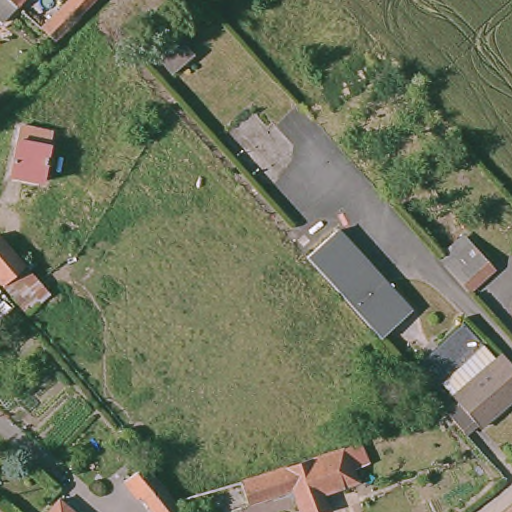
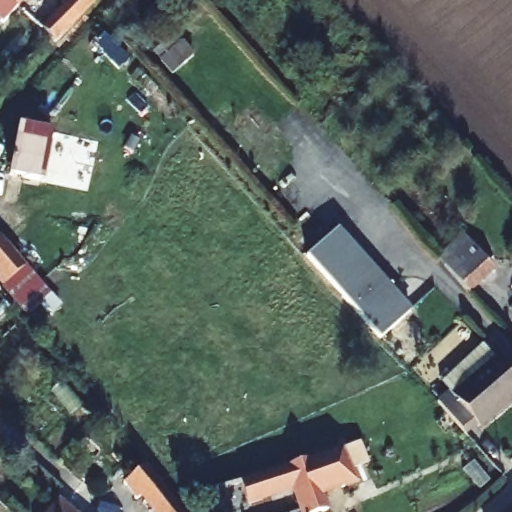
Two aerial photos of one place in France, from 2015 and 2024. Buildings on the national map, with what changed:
unchanged [(7,16),(0,23),(0,0),(23,0),(17,6),(7,16)]
unchanged [(96,0),(55,40),(41,25),(67,0),(96,0)]
unchanged [(177,50),(188,64),(168,80),(157,67),(177,50)]
unchanged [(52,140),(45,176),(13,170),(21,132),(52,140)]
unchanged [(335,295),(307,264),(337,236),(414,320),(381,346),(335,295)]
unchanged [(442,262),(469,239),(494,265),(466,289),(442,262)]
unchanged [(25,316),(0,287),(0,240),(48,296),(25,316)]
unchanged [(442,383),(486,346),(500,361),(505,357),(512,365),(512,411),(487,432),(482,427),(469,437),(441,405),(452,395),(442,383)]
unchanged [(241,481),(308,458),(340,447),(355,485),(321,497),(324,511),(323,512),(296,512),(289,491),(245,506),(243,500),(212,512),(187,512),(180,502),(241,481)]
unchanged [(142,498),(138,501),(124,482),(142,467),(174,505),(180,512),(151,512),(142,498)]
unchanged [(61,496),(80,512),(50,512),(61,496)]

